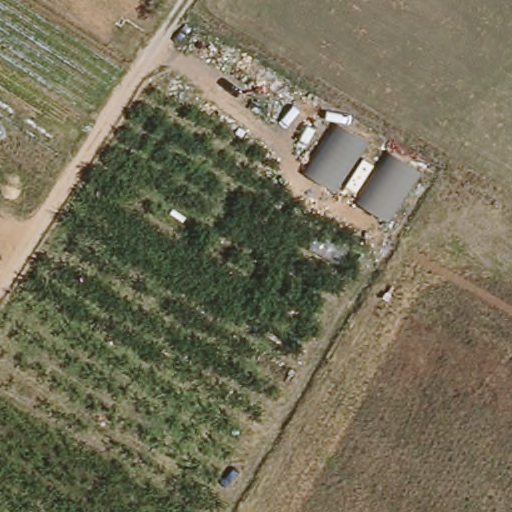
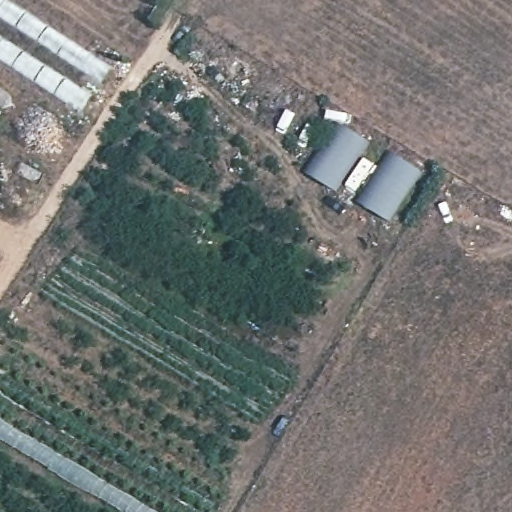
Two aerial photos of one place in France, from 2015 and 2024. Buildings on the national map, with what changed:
new [(79,110),(0,59),(0,0),(12,0),(110,63),(79,110)]
unchanged [(342,125),(367,141),(334,190),(309,175),(342,125)]
unchanged [(393,155),(419,172),(388,221),(361,205),(393,155)]

